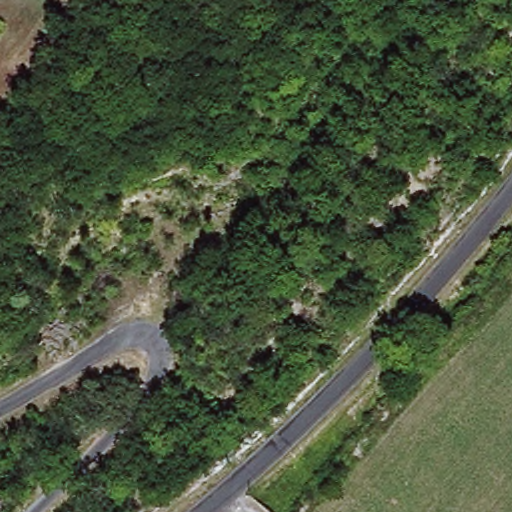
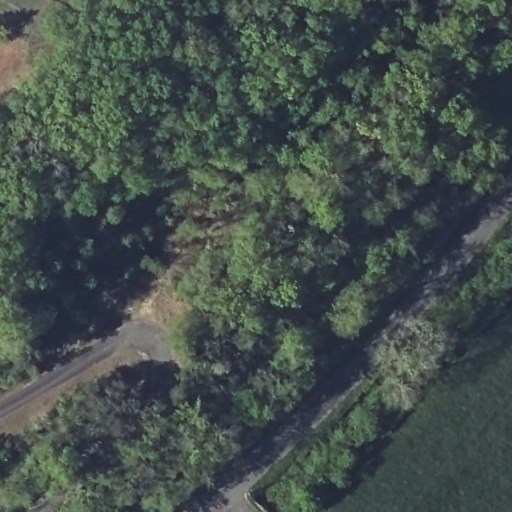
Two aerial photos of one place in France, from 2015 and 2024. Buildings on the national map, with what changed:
unchanged [(170,338),(187,321),(202,336),(185,353),(170,338)]

